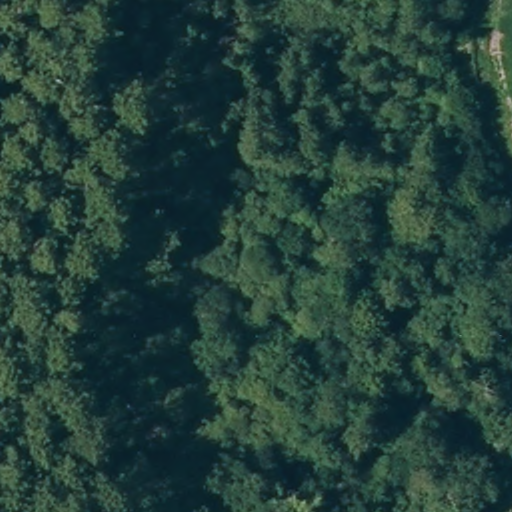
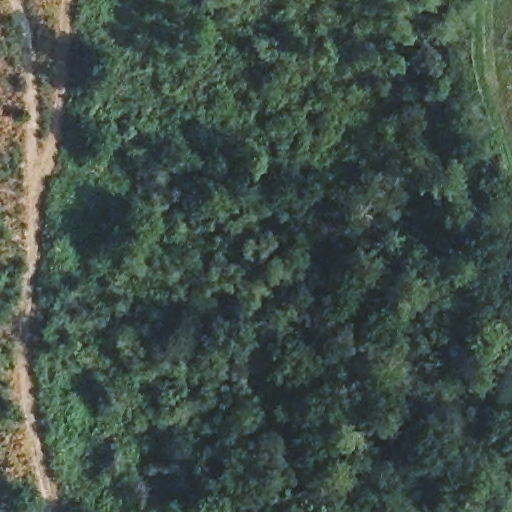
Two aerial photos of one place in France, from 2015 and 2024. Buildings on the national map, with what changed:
[]

